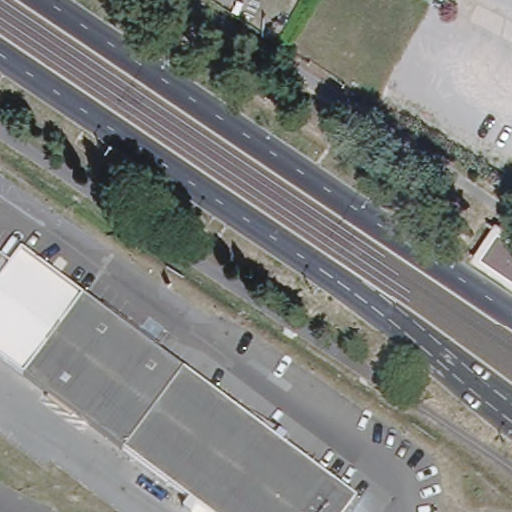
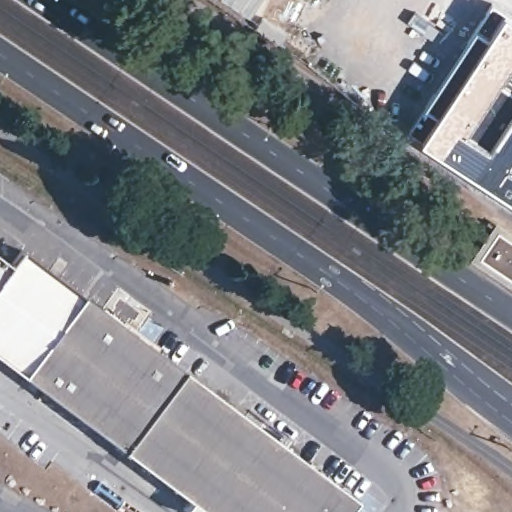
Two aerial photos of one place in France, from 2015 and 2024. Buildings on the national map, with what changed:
new [(512,16),(512,198),(421,139),(422,135),(410,128),(424,105),(471,32),(475,27),(491,2),(502,10),(512,16)]
unchanged [(495,221),(512,232),(512,287),(471,260),(495,221)]
unchanged [(10,263),(20,249),(349,491),(352,509),(350,512),(208,512),(0,357),(0,256),(10,263)]

